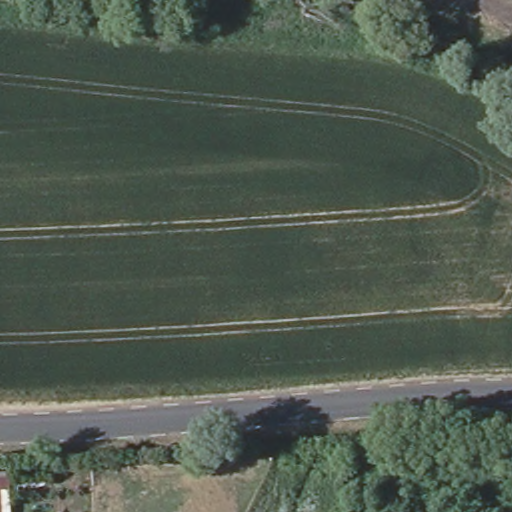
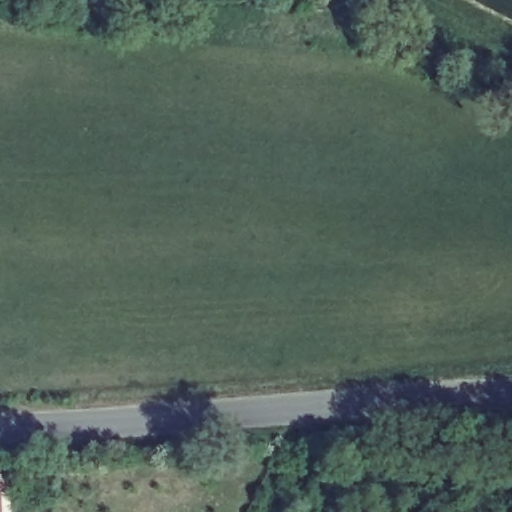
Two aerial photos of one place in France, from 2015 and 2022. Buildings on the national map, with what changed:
unchanged [(12,474),(14,493),(3,495),(4,512),(0,512),(0,475),(12,474)]

